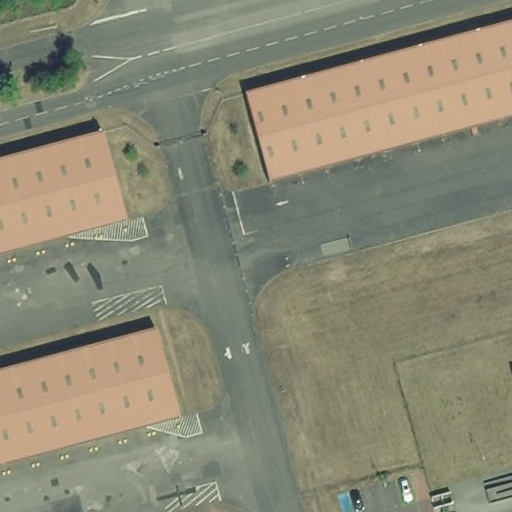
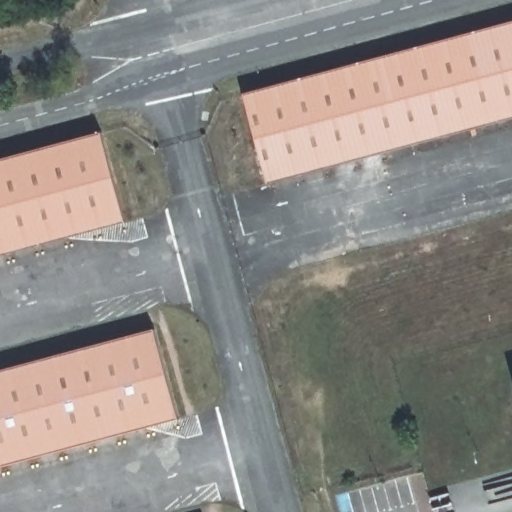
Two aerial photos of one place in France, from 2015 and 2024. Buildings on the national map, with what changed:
unchanged [(271,181),(245,92),(512,21),(512,115),(271,181)]
unchanged [(103,131),(126,219),(0,253),(0,159),(103,131)]
unchanged [(156,328),(179,417),(0,465),(0,370),(156,328)]
unchanged [(410,476),(426,471),(436,512),(420,512),(410,476)]

